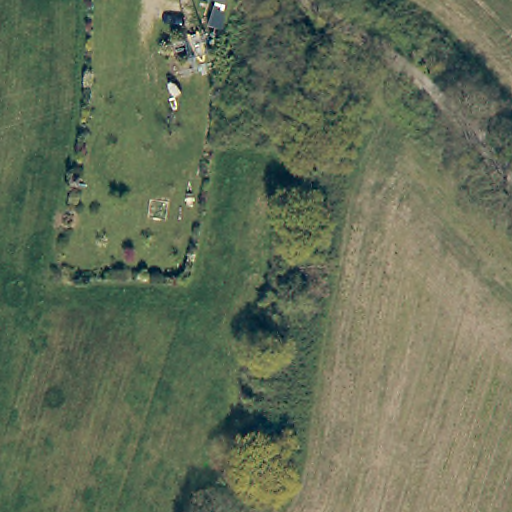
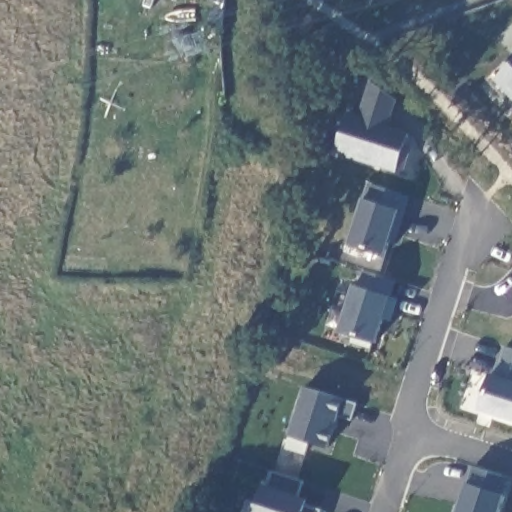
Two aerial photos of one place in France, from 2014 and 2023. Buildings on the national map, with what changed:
unchanged [(198,0),(225,0),(225,13),(198,0)]
new [(512,63),(512,95),(496,79),(512,63)]
new [(388,127),(410,134),(405,147),(411,149),(403,175),(334,153),(345,112),(360,116),(372,81),(397,100),(388,127)]
new [(394,244),(390,242),(385,256),(348,245),(367,182),(411,196),(394,244)]
new [(392,297),(399,300),(391,322),(383,320),(376,344),(339,332),(353,285),(358,286),(363,269),(396,280),(392,297)]
new [(488,373),(496,376),(503,344),(512,347),(512,420),(478,410),(488,373)]
new [(351,420),(340,417),(329,450),(288,437),(305,385),(343,398),(356,403),(351,420)]
new [(505,496),(500,512),(458,512),(467,484),(471,466),(510,477),(505,496)]
new [(320,512),(254,512),(260,483),(269,487),(274,473),(304,482),(300,496),(308,500),(307,502),(321,508),(320,512)]

